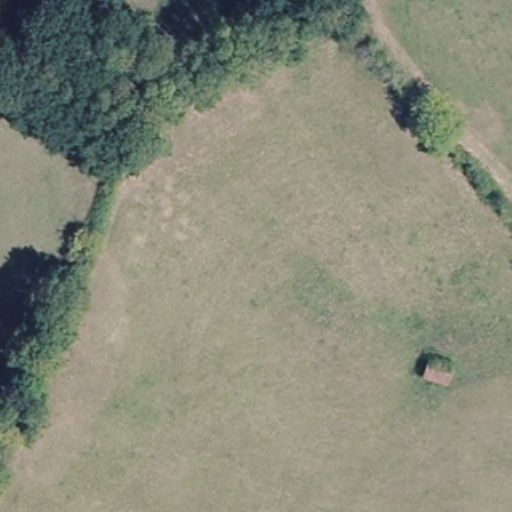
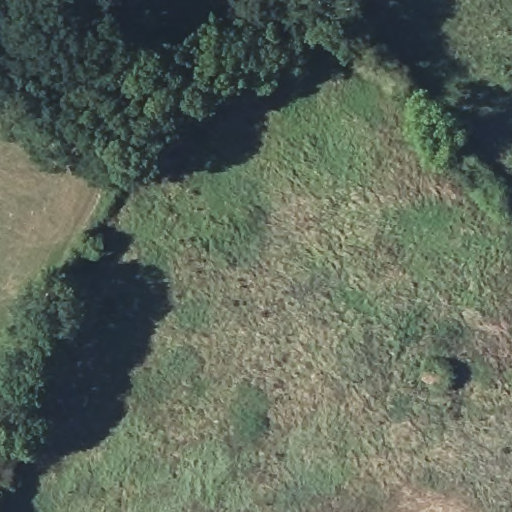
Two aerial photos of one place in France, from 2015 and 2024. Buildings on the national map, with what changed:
[]

